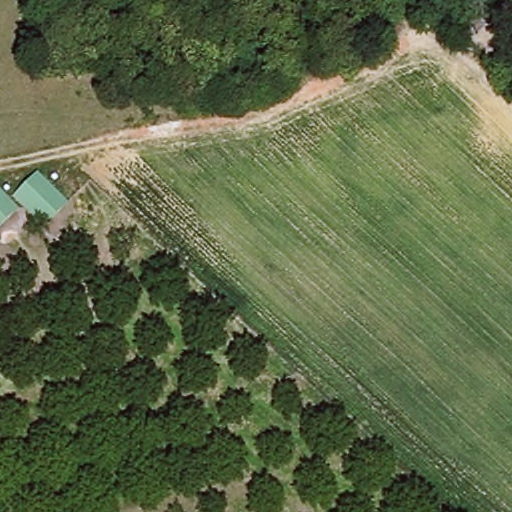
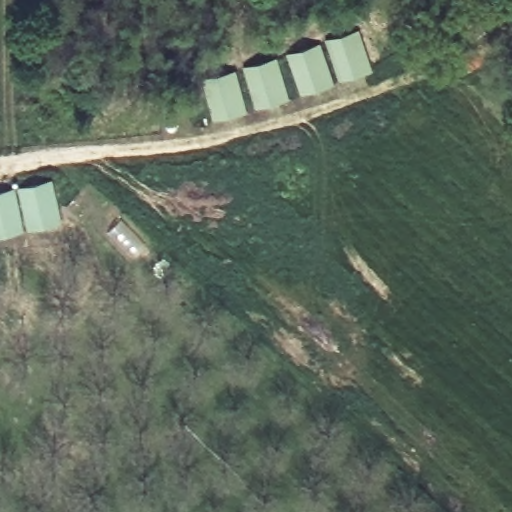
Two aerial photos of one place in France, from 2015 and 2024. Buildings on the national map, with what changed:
new [(335,85),(302,96),(288,54),(322,43),(335,85)]
new [(244,66),(279,56),(290,98),(256,108),(244,66)]
new [(203,79),(237,70),(249,112),(214,121),(203,79)]
unchanged [(14,199),(37,175),(69,203),(43,227),(14,199)]
unchanged [(19,210),(0,227),(0,191),(19,210)]

